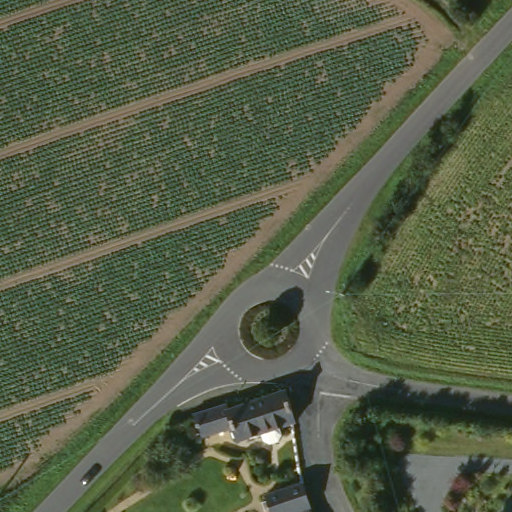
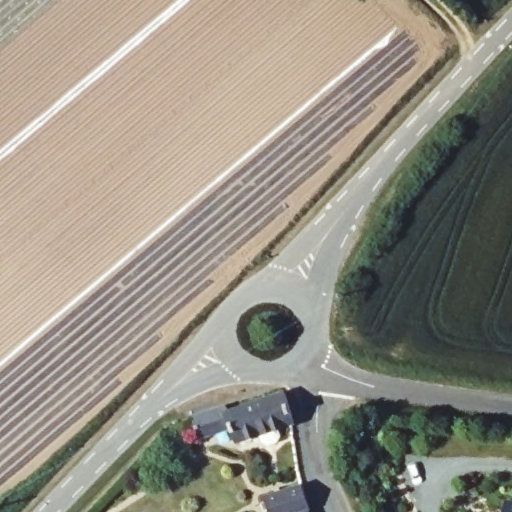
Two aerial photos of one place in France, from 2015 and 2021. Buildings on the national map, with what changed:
unchanged [(235,433),(205,448),(194,427),(220,413),(226,417),(271,396),(284,425),(240,442),(235,433)]
unchanged [(303,491),(310,509),(303,512),(272,512),(266,504),(301,487),(303,491)]
unchanged [(497,512),(498,497),(512,498),(512,512),(497,512)]

